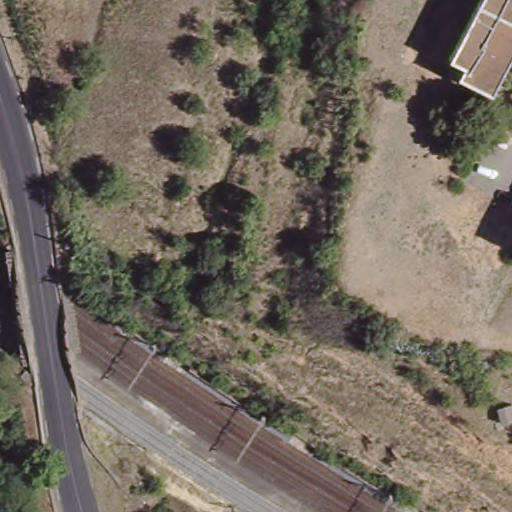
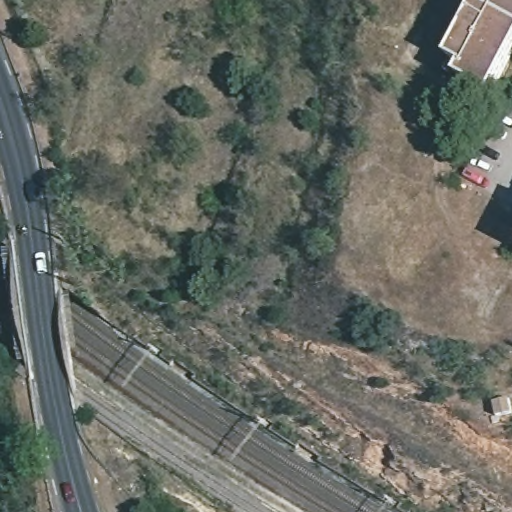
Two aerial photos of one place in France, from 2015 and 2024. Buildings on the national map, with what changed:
unchanged [(480,0),(512,0),(512,57),(493,95),(463,80),(468,70),(452,62),(480,0)]

